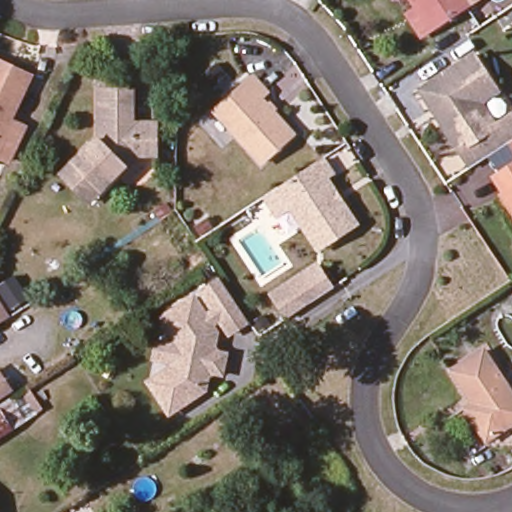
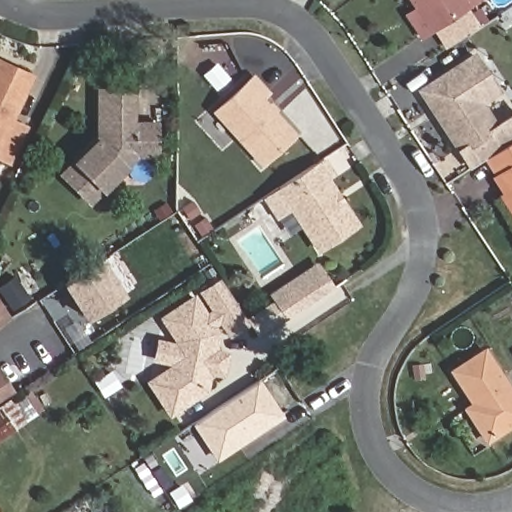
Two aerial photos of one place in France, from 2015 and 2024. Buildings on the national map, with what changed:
unchanged [(410,0),(464,0),(468,6),(430,30),(410,0)]
unchanged [(476,102),(491,125),(511,112),(512,112),(512,137),(475,161),(465,167),(414,90),(468,55),(492,92),(476,102)]
unchanged [(10,126),(24,132),(8,167),(0,163),(0,146),(0,145),(0,144),(0,67),(30,81),(10,126)]
unchanged [(293,135),(261,164),(215,112),(253,77),(266,92),(260,98),(293,135)]
unchanged [(101,190),(74,162),(97,137),(97,91),(132,91),(132,123),(155,123),(155,156),(136,156),(101,190)]
unchanged [(475,161),(512,137),(512,163),(487,180),(475,161)]
unchanged [(353,222),(317,246),(278,187),(322,159),(333,175),(325,180),(353,222)]
unchanged [(497,195),(487,180),(512,163),(512,221),(495,196),(497,195)]
new [(133,287),(85,318),(64,286),(112,255),(133,287)]
unchanged [(287,317),(270,291),(318,261),(335,288),(287,317)]
unchanged [(212,325),(219,332),(218,350),(225,352),(222,376),(211,375),(209,387),(169,418),(143,381),(168,362),(152,358),(155,337),(170,340),(154,315),(190,292),(202,308),(206,307),(195,287),(216,275),(245,322),(226,333),(219,322),(212,325)]
unchanged [(11,317),(0,324),(0,300),(11,317)]
unchanged [(512,423),(486,440),(466,408),(472,403),(451,371),(483,350),(512,394),(512,423)]
unchanged [(15,361),(27,379),(0,397),(0,370),(15,361)]
new [(215,462),(192,423),(260,380),(284,417),(215,462)]
unchanged [(17,394),(31,415),(0,435),(0,405),(17,394)]

